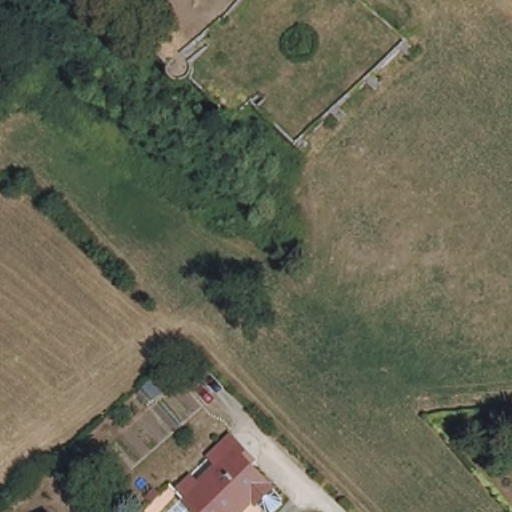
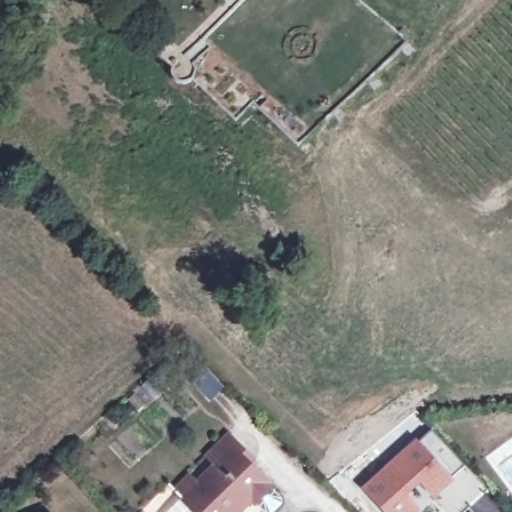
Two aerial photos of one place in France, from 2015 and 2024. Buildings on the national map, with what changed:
new [(384,512),(362,487),(415,438),(419,441),(431,430),(465,464),(451,476),(455,480),(434,500),(420,483),(407,495),(420,510),(418,512),(384,512)]
unchanged [(192,482),(235,440),(248,453),(242,458),(266,482),(277,493),(277,498),(267,508),(260,508),(250,497),(250,498),(245,493),(225,512),(198,512),(180,492),(172,485),(184,473),(192,482)]

